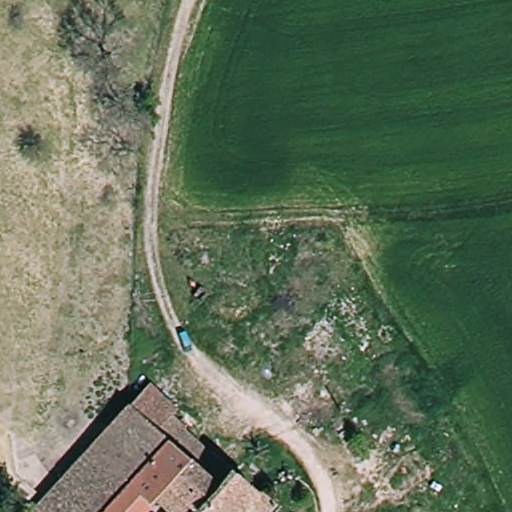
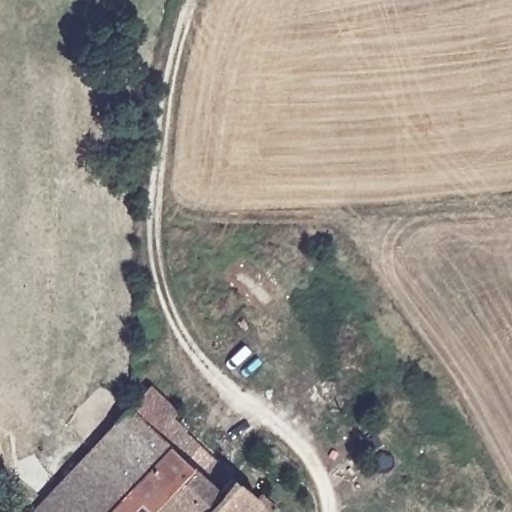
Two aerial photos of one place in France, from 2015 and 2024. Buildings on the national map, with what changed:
unchanged [(150,512),(40,512),(38,509),(131,407),(147,389),(176,415),(169,422),(231,477),(260,502),(251,512),(166,512),(158,504),(150,512)]

